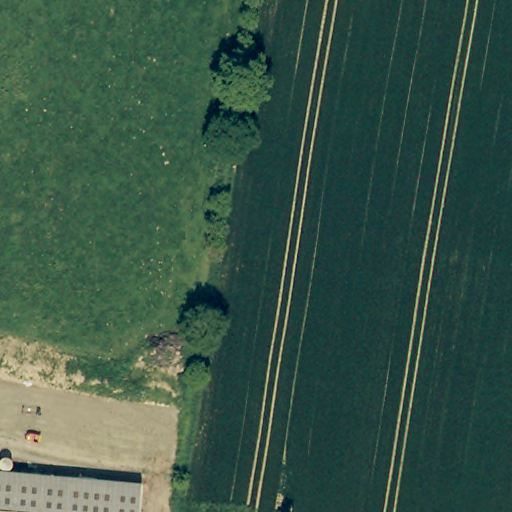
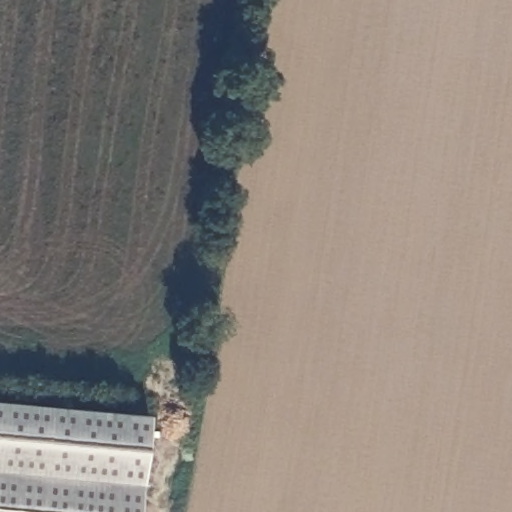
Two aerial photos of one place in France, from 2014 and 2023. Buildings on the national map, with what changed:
new [(142,417),(137,480),(0,468),(0,405),(142,417)]
unchanged [(137,480),(135,512),(0,512),(0,468),(137,480)]

